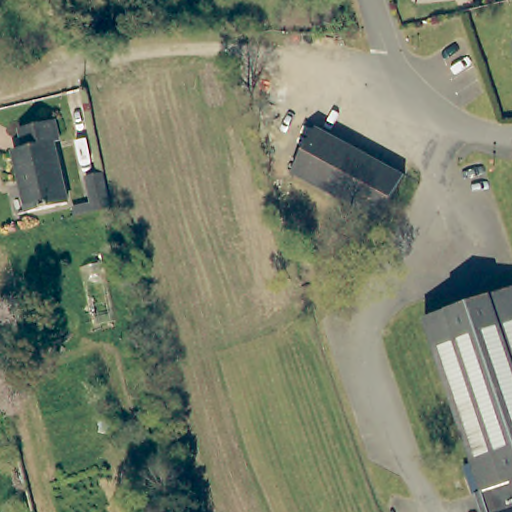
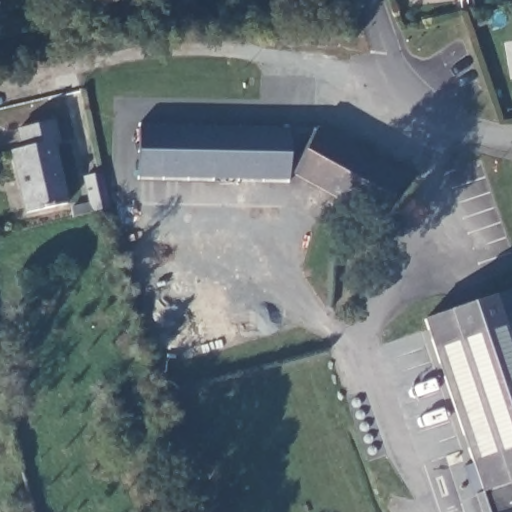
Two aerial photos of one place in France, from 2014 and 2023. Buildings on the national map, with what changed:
unchanged [(508,44),(512,43),(512,64),(508,44)]
unchanged [(14,148),(24,145),(20,127),(53,118),(57,136),(52,139),(68,199),(27,209),(14,148)]
new [(315,139),(294,177),(136,176),(139,126),(319,132),(315,139)]
unchanged [(319,132),(407,180),(382,225),(331,197),(294,177),(315,139),(319,132)]
unchanged [(74,204),(92,200),(86,174),(101,170),(106,195),(108,206),(94,210),(76,214),(74,204)]
unchanged [(512,293),(512,464),(476,475),(425,322),(512,293)]
unchanged [(482,512),(477,495),(482,492),(476,475),(512,464),(512,512),(482,512)]

